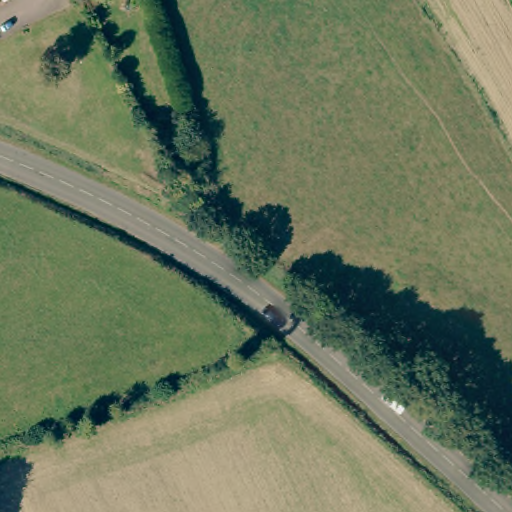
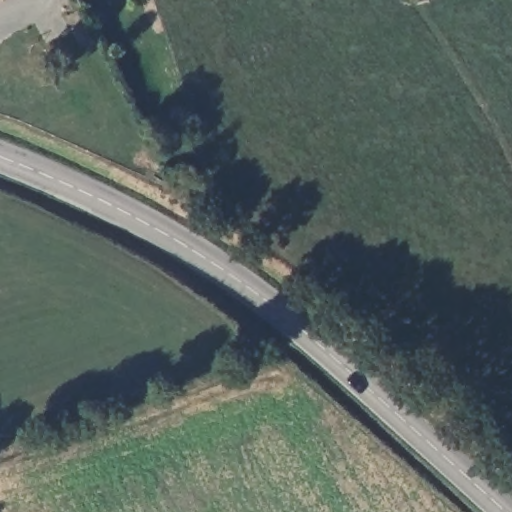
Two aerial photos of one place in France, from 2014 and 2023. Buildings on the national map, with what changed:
[]

